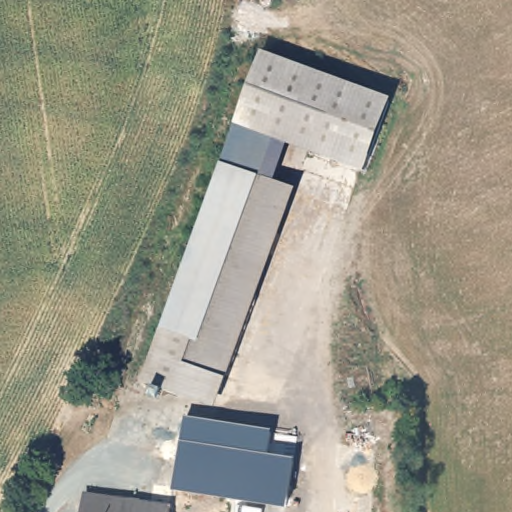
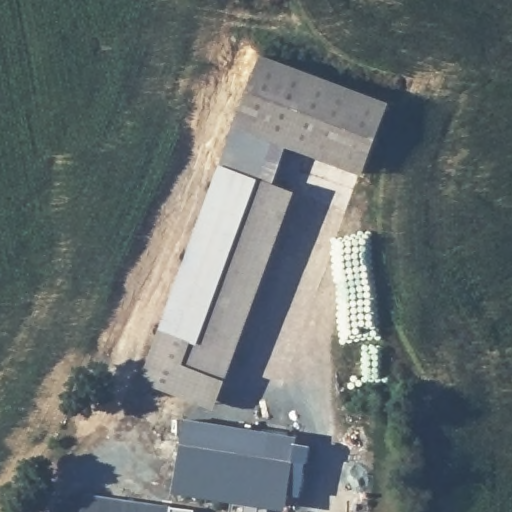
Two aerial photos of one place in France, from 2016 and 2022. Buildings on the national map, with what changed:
unchanged [(381,105),(358,174),(287,149),(233,131),(229,129),(253,60),(381,105)]
unchanged [(233,131),(287,149),(274,188),(251,181),(220,170),(233,131)]
unchanged [(215,169),(220,170),(251,181),(176,398),(139,387),(215,169)]
unchanged [(251,181),(274,188),(199,406),(176,398),(251,181)]
unchanged [(171,491),(182,422),(298,436),(296,467),(288,510),(256,506),(171,491)]
unchanged [(190,508),(190,512),(82,512),(86,496),(190,508)]

